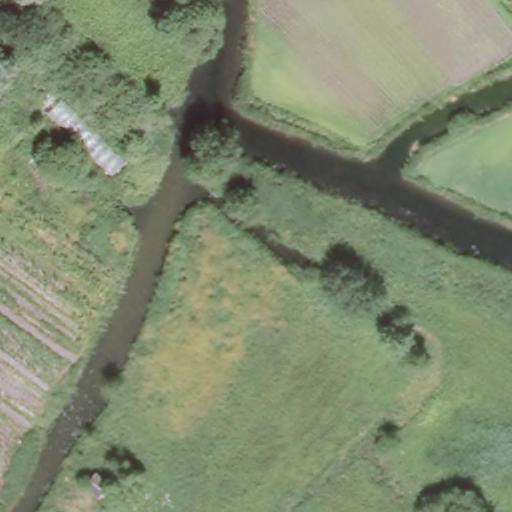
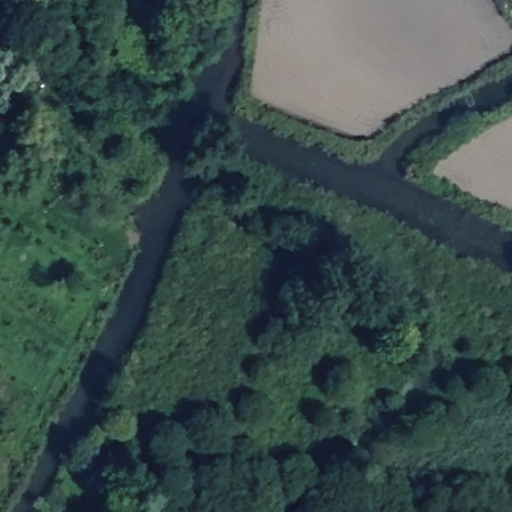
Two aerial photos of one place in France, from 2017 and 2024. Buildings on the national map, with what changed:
unchanged [(190,12),(173,0),(198,0),(200,1),(190,12)]

